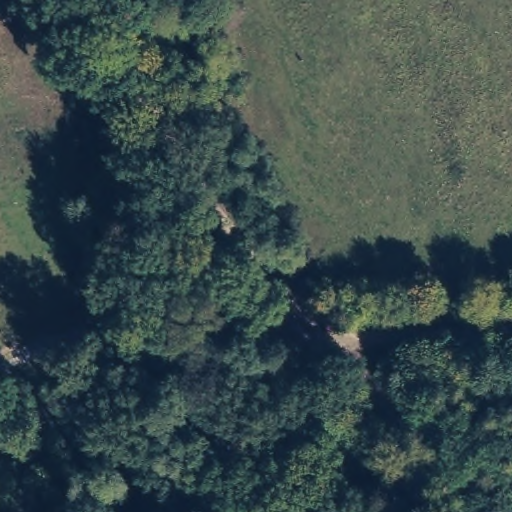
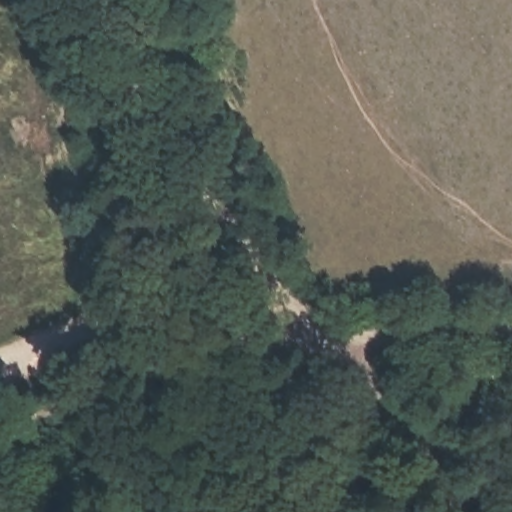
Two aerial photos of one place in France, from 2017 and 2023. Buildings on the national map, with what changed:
[]

